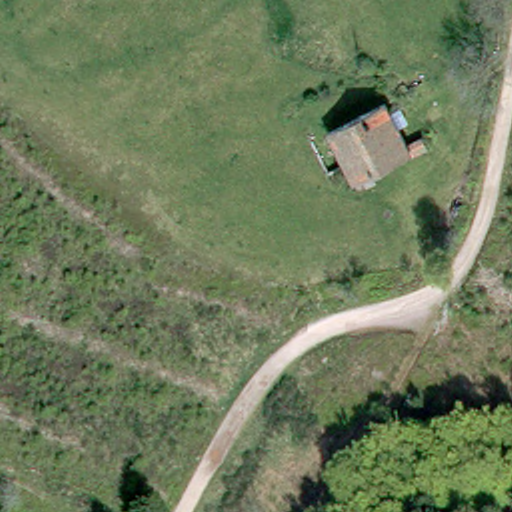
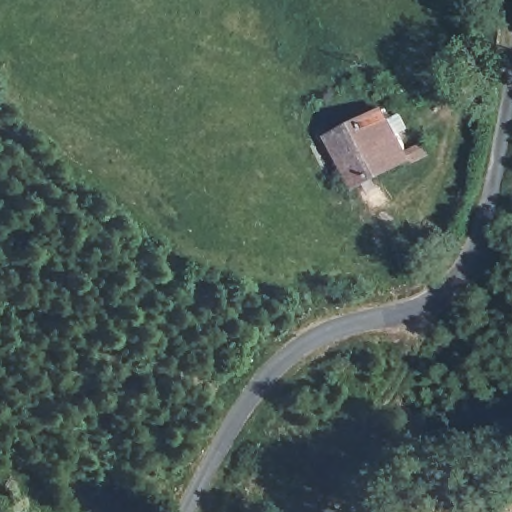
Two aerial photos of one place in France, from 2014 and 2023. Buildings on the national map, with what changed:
unchanged [(402,156),(350,183),(325,135),(377,106),(402,156)]

